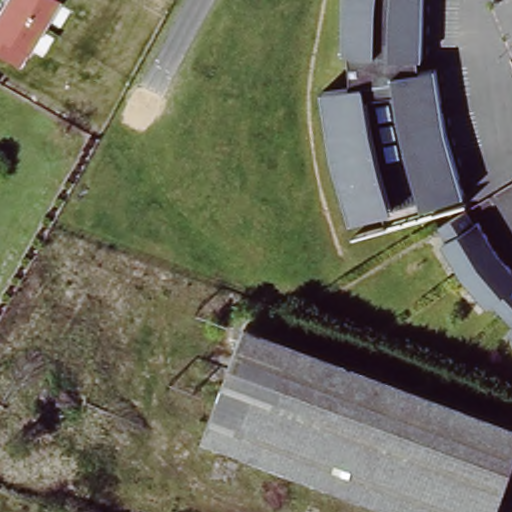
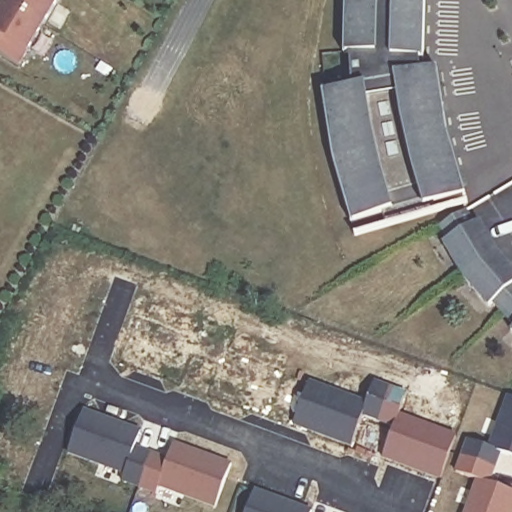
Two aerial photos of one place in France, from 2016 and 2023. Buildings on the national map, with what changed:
unchanged [(0,57),(0,5),(3,0),(60,0),(19,67),(0,57)]
unchanged [(325,98),(351,90),(350,51),(352,0),(429,0),(428,67),(437,68),(447,127),(472,195),(356,223),(336,160),(325,98)]
unchanged [(512,258),(512,327),(505,321),(471,285),(446,246),(438,227),(480,209),(512,258)]
demolished [(243,323),(512,425),(512,488),(510,493),(219,388),(243,323)]
new [(309,382),(366,403),(362,413),(351,445),(293,424),(309,382)]
new [(366,403),(374,382),(406,394),(398,415),(394,426),(362,413),(366,403)]
demolished [(412,512),(202,435),(219,388),(510,493),(503,512),(412,512)]
new [(500,453),(501,451),(489,447),(508,396),(512,397),(512,457),(500,453)]
new [(219,509),(159,488),(156,495),(121,482),(124,475),(68,455),(83,410),(140,430),(136,448),(168,460),(173,443),(232,463),(219,509)]
new [(394,426),(398,415),(456,436),(441,478),(383,456),(394,426)]
new [(490,483),(456,471),(467,440),(501,451),(500,453),(490,483)]
new [(466,512),(478,479),(512,491),(512,512),(466,512)]
new [(313,510),(312,512),(245,512),(253,489),(313,510)]

